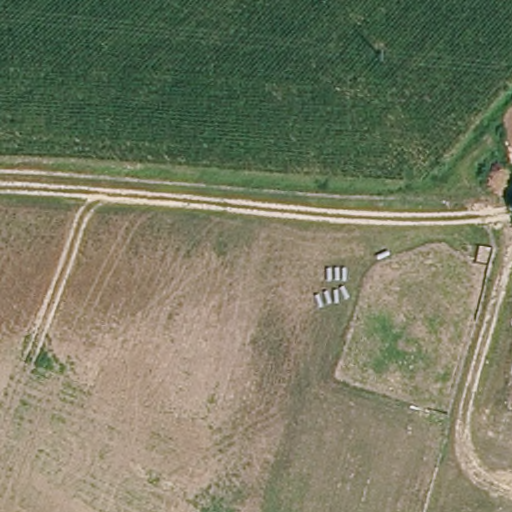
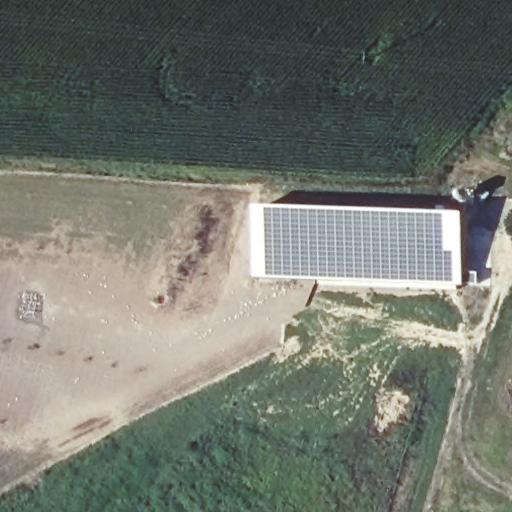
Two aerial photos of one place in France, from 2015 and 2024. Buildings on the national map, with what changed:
new [(468,215),(465,285),(255,278),(258,207),(468,215)]

